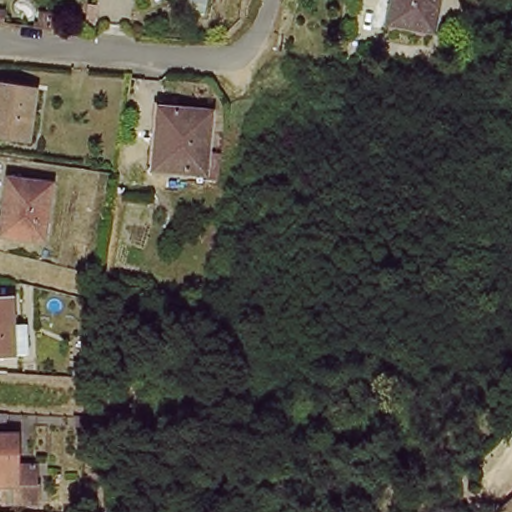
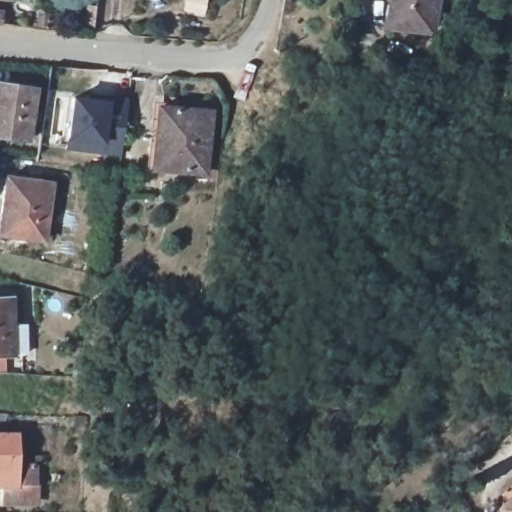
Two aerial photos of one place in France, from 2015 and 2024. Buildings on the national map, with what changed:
unchanged [(388,0),(443,0),(435,33),(395,24),(383,22),(388,0)]
unchanged [(8,9),(6,24),(0,24),(0,8),(8,9)]
unchanged [(40,13),(59,15),(57,31),(38,29),(40,13)]
unchanged [(35,87),(27,142),(0,138),(0,83),(35,87)]
new [(76,98),(92,99),(92,94),(110,97),(130,99),(125,153),(105,151),(71,147),(72,137),(76,98)]
unchanged [(154,148),(159,148),(163,105),(210,109),(205,168),(154,166),(154,148)]
unchanged [(8,180),(54,189),(44,246),(0,238),(0,224),(8,180)]
unchanged [(13,299),(14,328),(16,355),(0,356),(0,300),(13,299)]
unchanged [(73,362),(91,363),(91,381),(72,380),(73,362)]
unchanged [(89,421),(88,432),(71,431),(72,420),(89,421)]
unchanged [(39,482),(38,499),(5,496),(6,484),(0,483),(0,432),(23,433),(22,459),(39,460),(39,482)]
unchanged [(512,496),(512,512),(499,512),(497,509),(512,496)]

